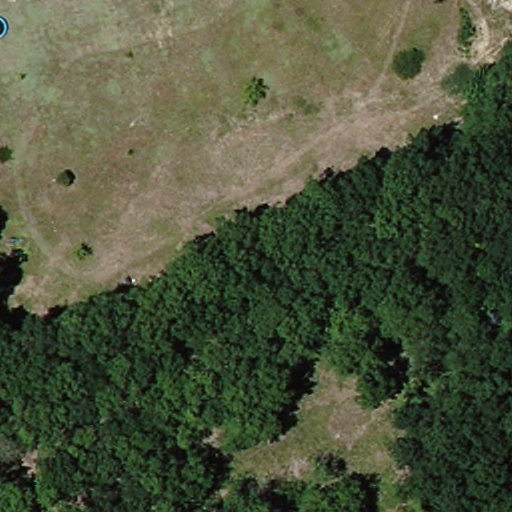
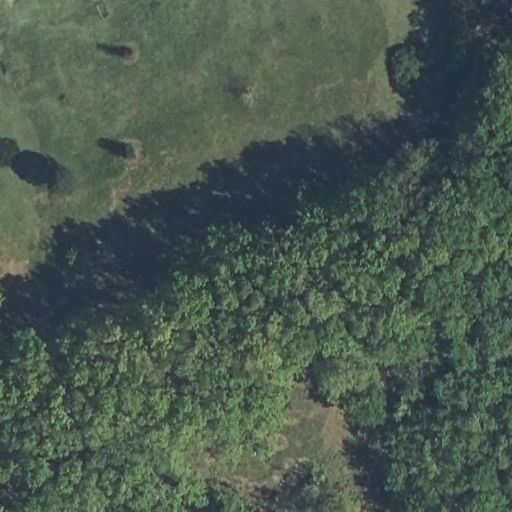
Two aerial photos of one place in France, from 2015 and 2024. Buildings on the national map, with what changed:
[]

